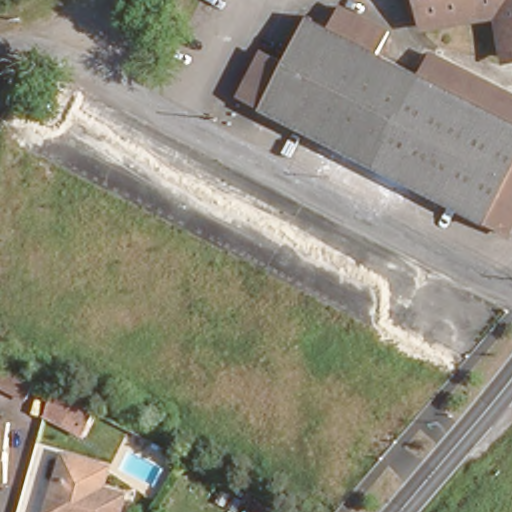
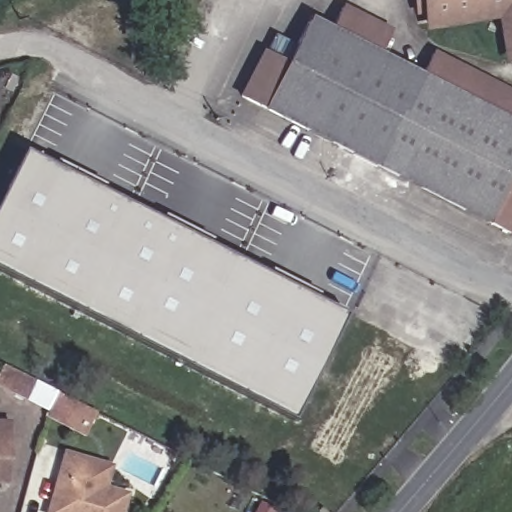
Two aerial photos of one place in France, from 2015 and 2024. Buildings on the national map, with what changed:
unchanged [(507,68),(500,24),(428,35),(422,0),(512,0),(512,67),(507,68)]
unchanged [(264,56),(285,66),(309,21),(331,32),(343,10),(389,34),(379,56),(423,79),(434,56),(512,96),(512,233),(509,239),(240,99),(264,56)]
new [(317,293),(314,298),(345,313),(318,367),(290,422),(0,275),(0,193),(21,150),(52,165),(54,160),(103,185),(100,190),(159,219),(161,214),(210,239),(208,244),(266,273),(269,268),(317,293)]
unchanged [(0,383),(0,374),(5,364),(38,381),(29,399),(0,383)]
unchanged [(88,421),(69,412),(63,424),(45,415),(46,413),(58,391),(85,406),(94,410),(88,421)]
unchanged [(4,478),(0,478),(0,419),(7,420),(4,478)]
unchanged [(113,464),(106,486),(131,493),(125,512),(48,512),(63,450),(113,464)]
unchanged [(321,510),(323,512),(319,512),(321,510)]

